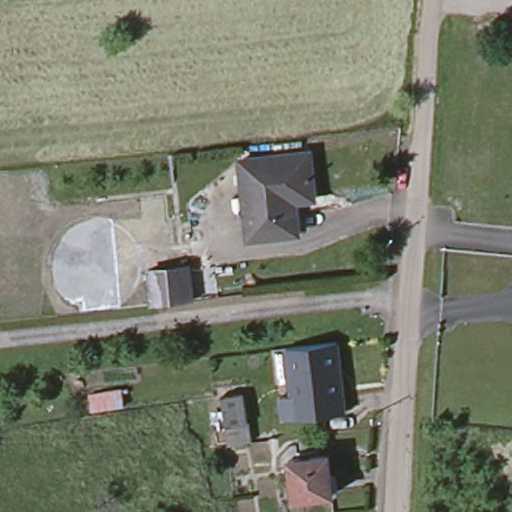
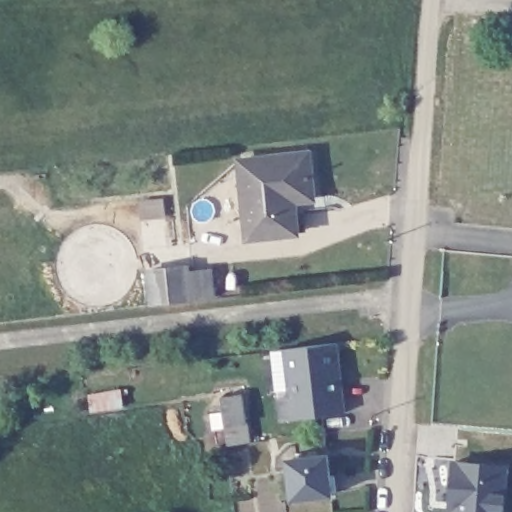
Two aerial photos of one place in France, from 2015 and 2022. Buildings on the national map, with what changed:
unchanged [(234,162),(304,154),(308,199),(286,201),(290,234),(243,239),(234,162)]
unchanged [(148,311),(144,267),(191,262),(196,303),(148,311)]
unchanged [(335,340),(344,410),(281,417),(279,395),(291,393),(286,346),(335,340)]
unchanged [(225,390),(244,387),(248,417),(251,417),(254,435),(231,437),(229,420),(225,390)]
unchanged [(338,495),(331,496),(331,497),(293,501),(289,462),(301,461),(301,455),(309,455),(309,460),(327,458),(329,479),(336,478),(338,495)]
new [(457,507),(452,507),(453,493),(455,461),(506,465),(503,511),(502,512),(456,512),(457,507)]

